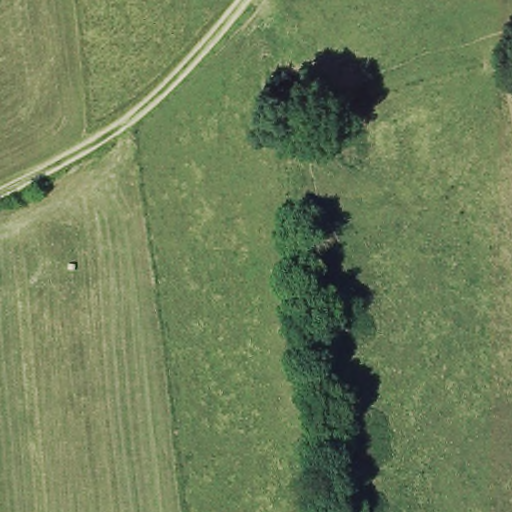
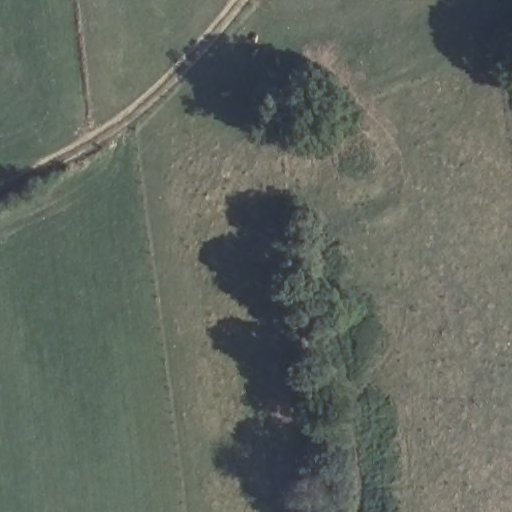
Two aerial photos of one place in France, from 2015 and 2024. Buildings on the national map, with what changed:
[]

